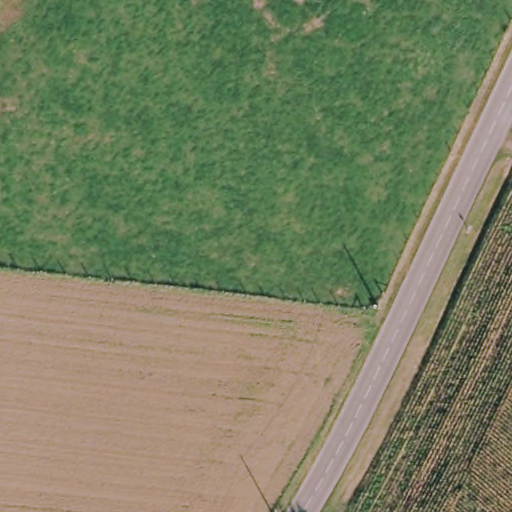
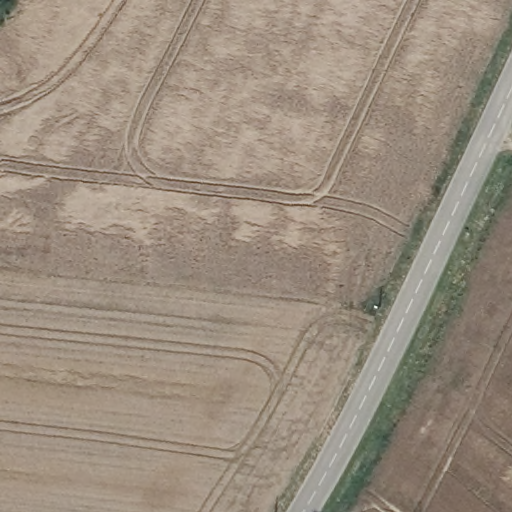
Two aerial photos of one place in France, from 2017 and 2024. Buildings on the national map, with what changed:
[]

